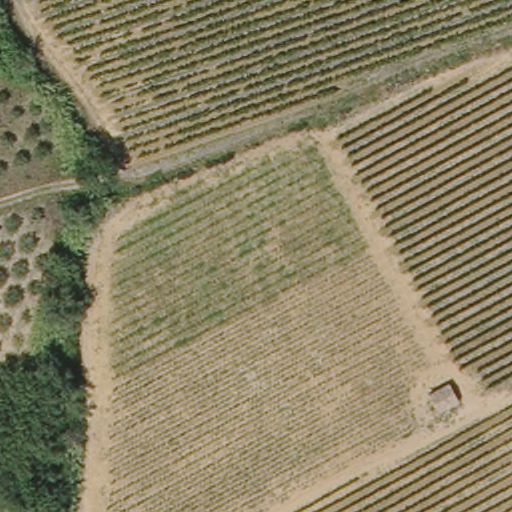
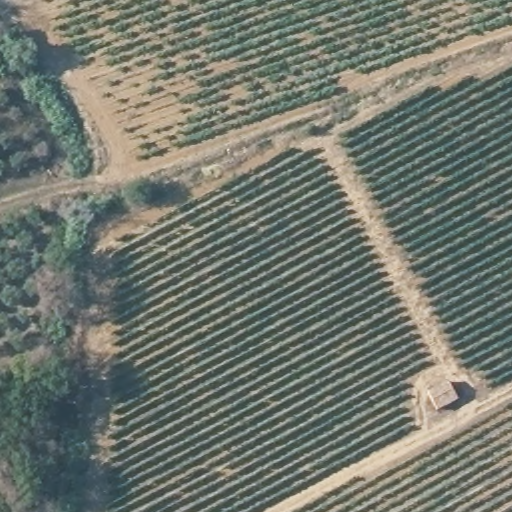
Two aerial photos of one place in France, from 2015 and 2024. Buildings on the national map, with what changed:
unchanged [(459,396),(440,409),(430,388),(450,377),(459,396)]

